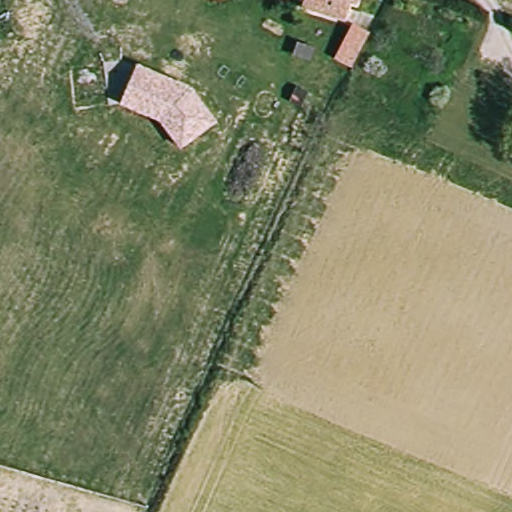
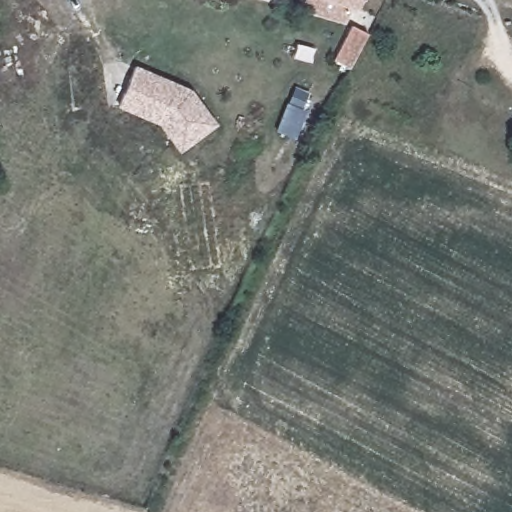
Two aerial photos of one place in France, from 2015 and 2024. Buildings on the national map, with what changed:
unchanged [(363,4),(357,1),(350,17),(309,0),(365,0),(363,4)]
unchanged [(340,59),(353,28),(367,34),(354,64),(340,59)]
unchanged [(220,135),(182,155),(167,126),(128,102),(117,101),(117,58),(137,59),(149,67),(201,98),(220,135)]

